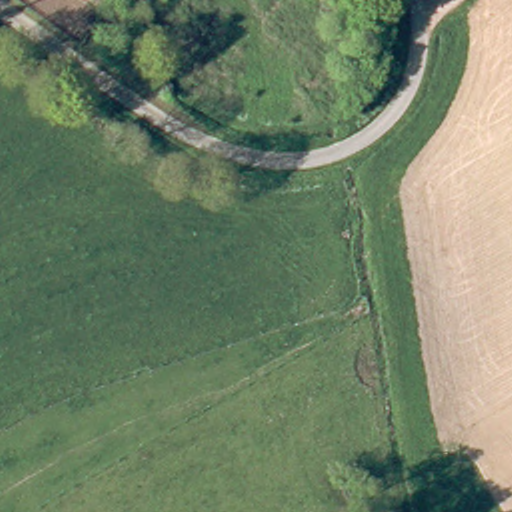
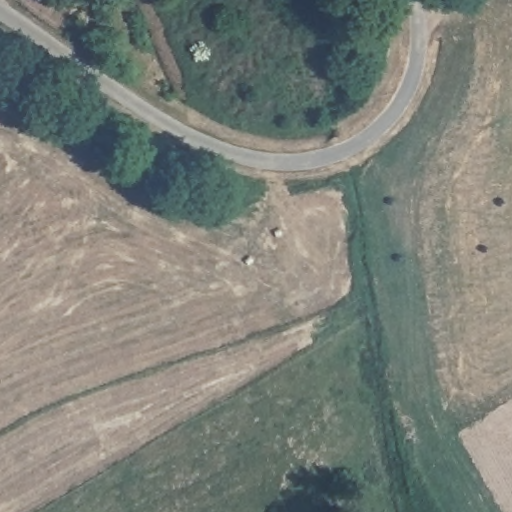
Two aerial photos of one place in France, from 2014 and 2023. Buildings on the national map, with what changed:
[]

